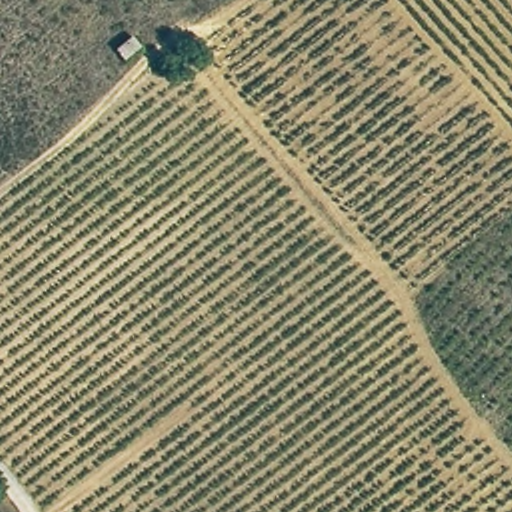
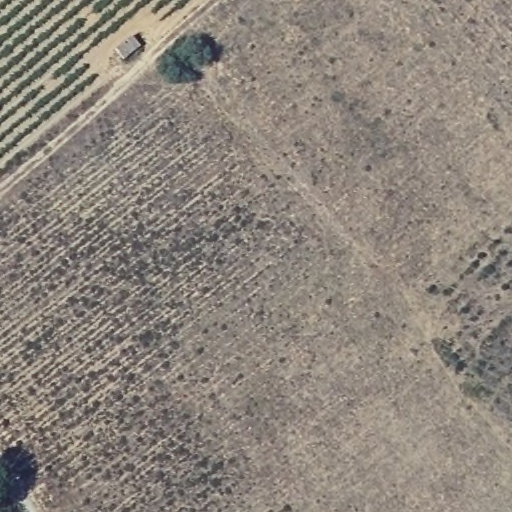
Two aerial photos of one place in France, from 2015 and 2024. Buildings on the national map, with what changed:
unchanged [(137,51),(120,66),(109,53),(127,38),(137,51)]

